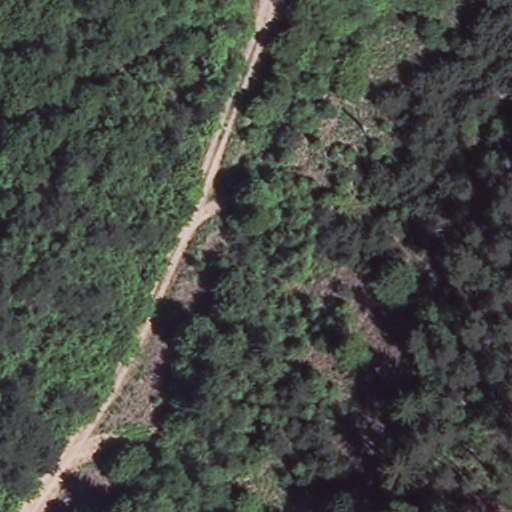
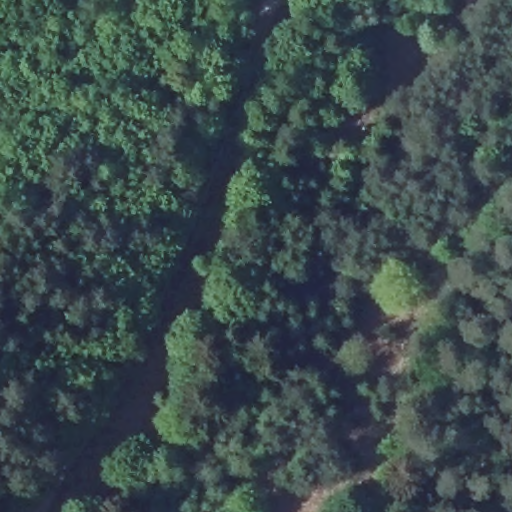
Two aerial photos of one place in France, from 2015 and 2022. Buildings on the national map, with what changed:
[]

